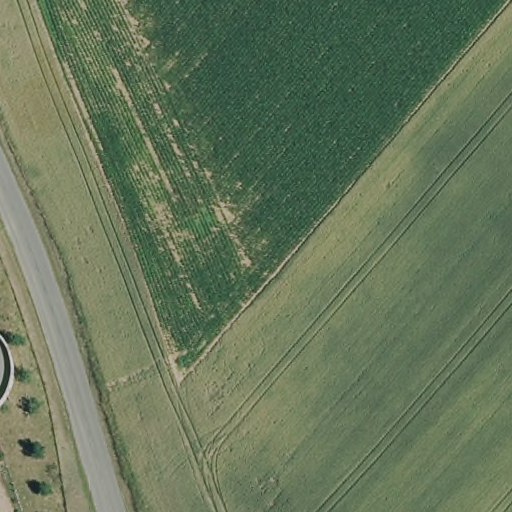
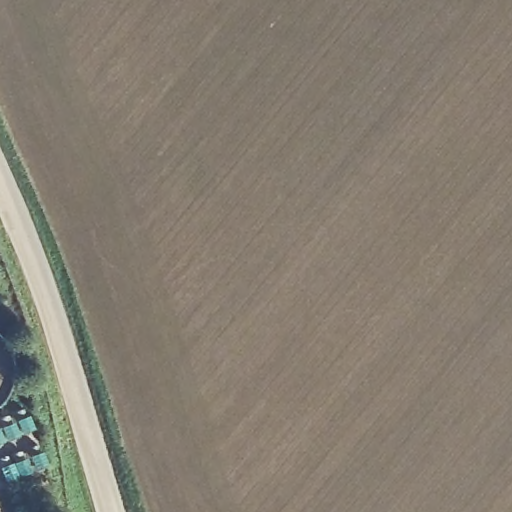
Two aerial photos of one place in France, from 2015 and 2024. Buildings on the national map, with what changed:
[]

